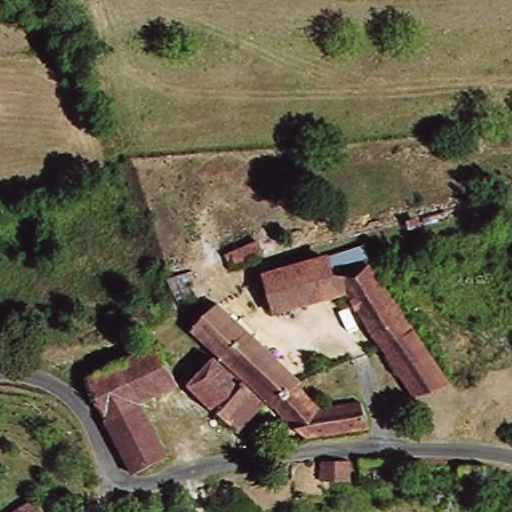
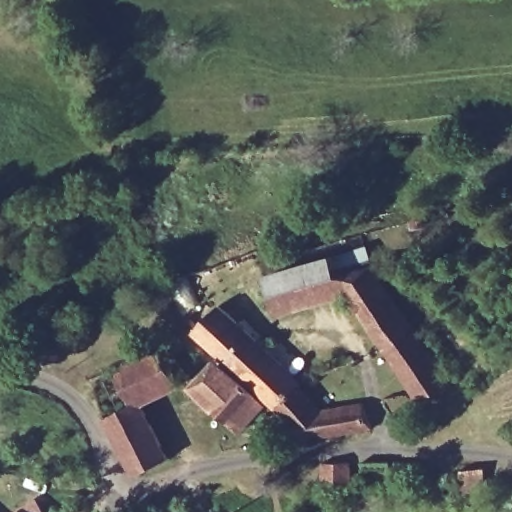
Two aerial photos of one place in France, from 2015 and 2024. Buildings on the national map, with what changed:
unchanged [(393,314),(405,333),(376,352),(339,294),(269,317),(258,281),(320,262),(324,275),(363,266),(393,314)]
unchanged [(186,333),(214,305),(292,381),(290,385),(266,411),(186,333)]
unchanged [(98,336),(118,327),(128,349),(108,358),(98,336)]
unchanged [(376,352),(405,333),(444,392),(409,404),(376,352)]
unchanged [(150,349),(168,387),(133,405),(99,423),(79,385),(150,349)]
unchanged [(184,386),(208,363),(258,407),(233,434),(184,386)]
unchanged [(290,385),(311,406),(355,403),(365,429),(296,441),(266,411),(290,385)]
unchanged [(161,459),(128,476),(99,423),(133,405),(161,459)]
unchanged [(424,479),(397,480),(397,466),(424,465),(424,479)]
unchanged [(388,486),(361,487),(361,468),(387,467),(388,486)]
unchanged [(322,469),(346,468),(347,488),(323,489),(322,469)]
unchanged [(456,473),(478,472),(480,505),(462,506),(461,494),(457,494),(456,473)]
unchanged [(36,512),(14,512),(30,503),(36,512)]

